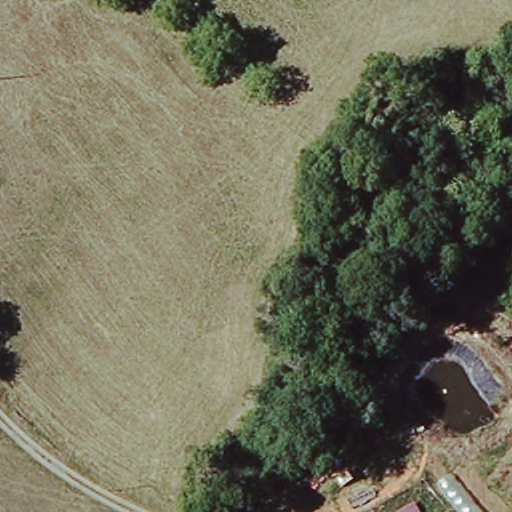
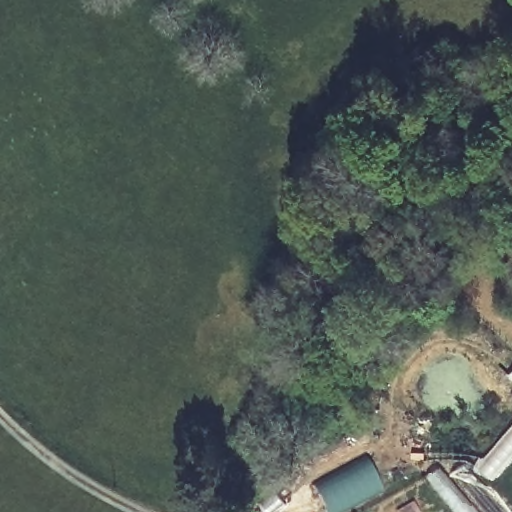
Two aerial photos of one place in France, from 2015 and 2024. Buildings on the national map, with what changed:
new [(343,512),(326,512),(313,486),(366,459),(383,492),(343,512)]
new [(465,463),(509,512),(484,512),(450,474),(465,463)]

